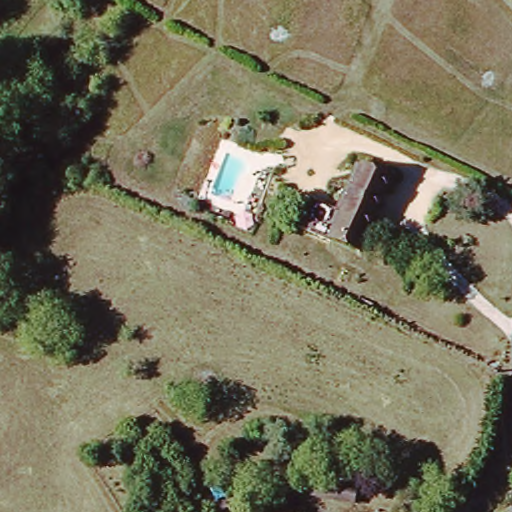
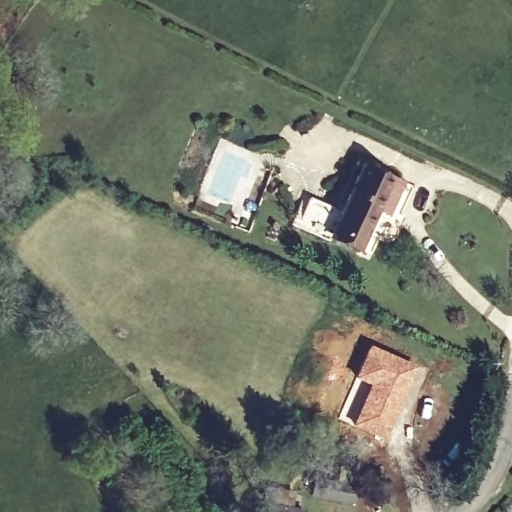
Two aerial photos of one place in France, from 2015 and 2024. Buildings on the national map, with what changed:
unchanged [(402,168),(360,256),(327,240),(372,152),(402,168)]
new [(368,385),(354,377),(368,344),(415,365),(387,439),(352,424),(368,385)]
new [(314,472),(360,479),(355,505),(310,496),(314,472)]
unchanged [(495,511),(507,498),(512,503),(512,512),(496,512),(495,511)]

